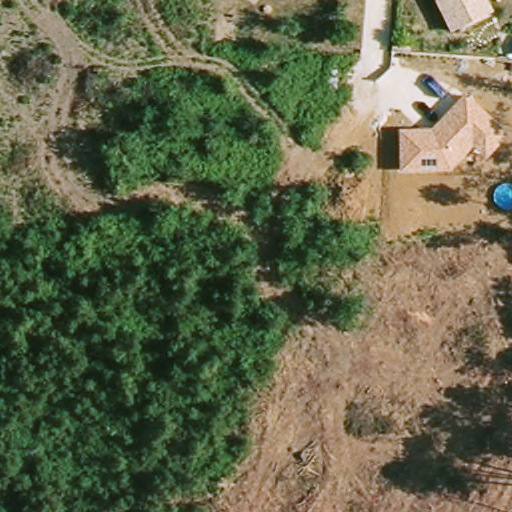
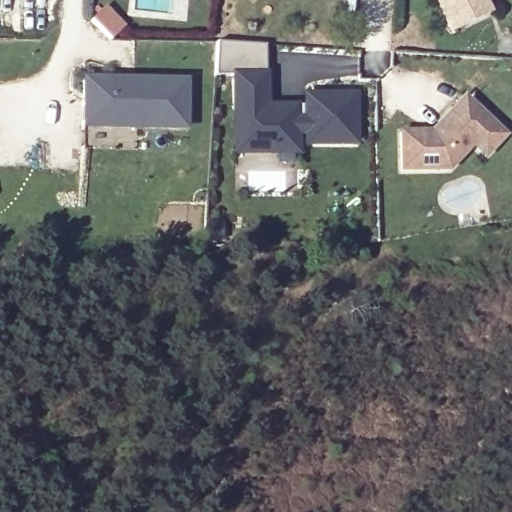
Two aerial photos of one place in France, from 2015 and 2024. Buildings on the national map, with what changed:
unchanged [(434,0),(479,0),(486,16),(481,18),(449,35),(436,10),(433,4),(434,0)]
new [(268,73),(269,103),(302,102),(302,92),(355,91),(358,148),(298,148),(298,155),(230,157),(230,73),(268,73)]
new [(79,82),(180,84),(179,131),(78,130),(79,82)]
unchanged [(508,134),(487,160),(473,148),(448,174),(398,174),(397,132),(431,130),(463,94),(508,134)]

